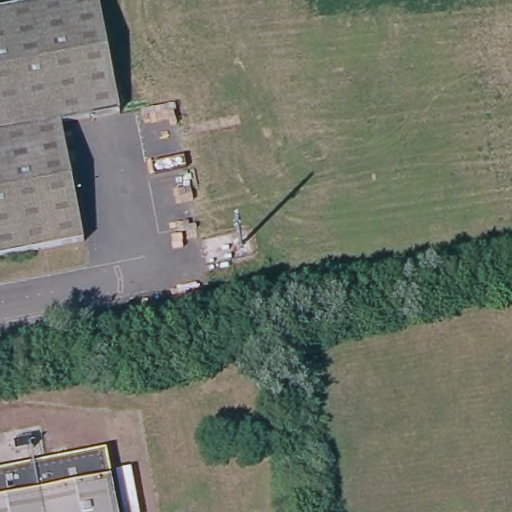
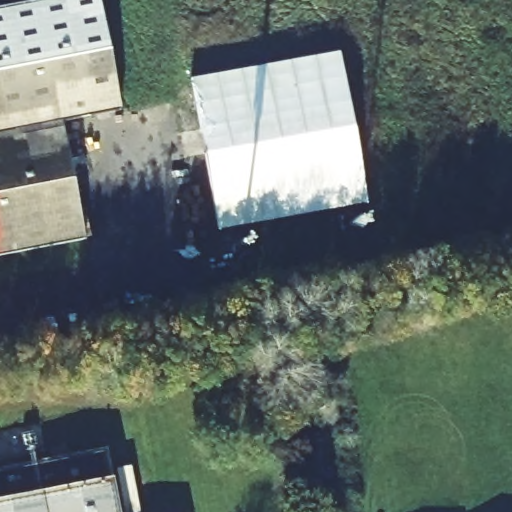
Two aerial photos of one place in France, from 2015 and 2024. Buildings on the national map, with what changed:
unchanged [(66,119),(85,235),(0,252),(0,17),(97,2),(122,109),(66,119)]
new [(346,49),(367,206),(217,227),(194,79),(346,49)]
unchanged [(117,512),(0,512),(0,476),(107,456),(117,512)]

